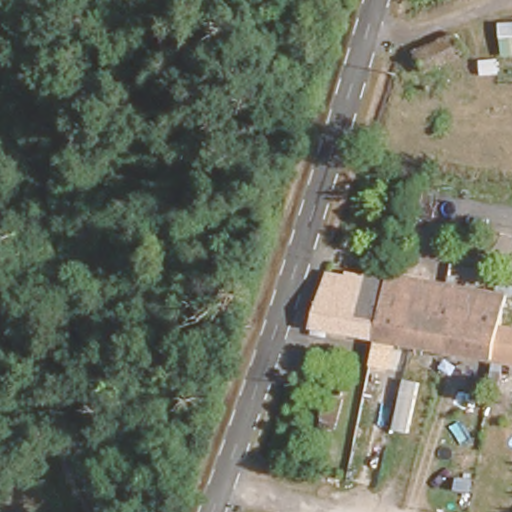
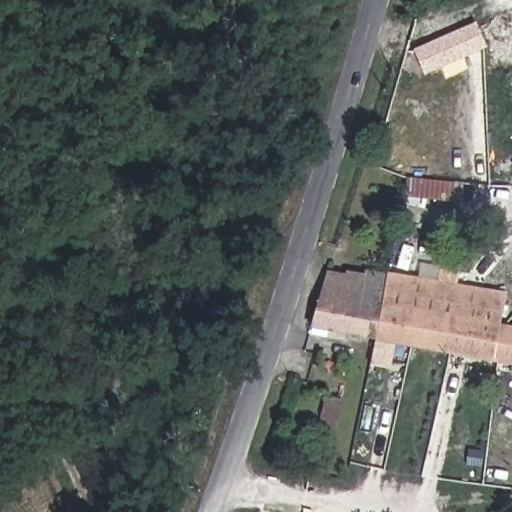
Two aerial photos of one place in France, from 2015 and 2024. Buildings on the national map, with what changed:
new [(487,48),(425,76),(414,50),(476,22),(487,48)]
unchanged [(501,38),(500,23),(512,22),(512,56),(503,57),(501,38)]
demolished [(455,34),(468,64),(423,84),(420,76),(410,81),(400,60),(400,58),(455,34)]
unchanged [(366,266),(381,270),(429,281),(434,264),(482,277),(479,292),(500,297),(505,276),(512,278),(512,299),(506,298),(500,324),(512,327),(512,364),(368,335),(309,323),(327,269),(351,267),(366,266)]
unchanged [(347,389),(339,422),(318,417),(326,384),(347,389)]

